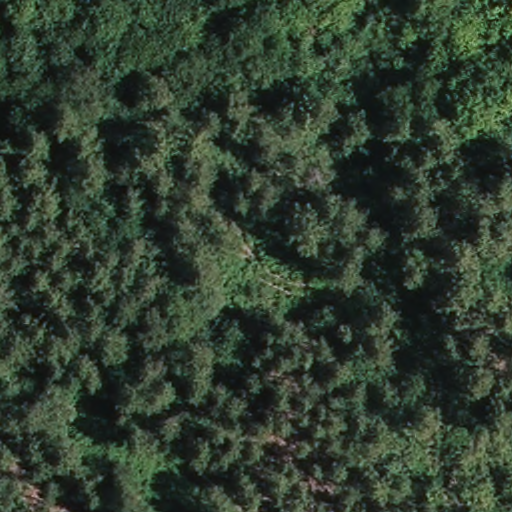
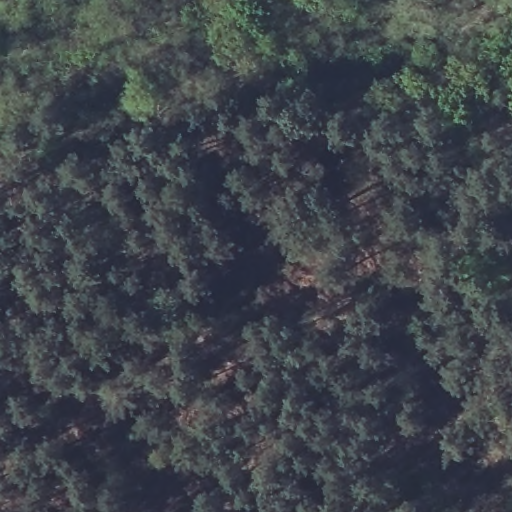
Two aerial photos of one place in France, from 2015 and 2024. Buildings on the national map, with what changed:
[]

